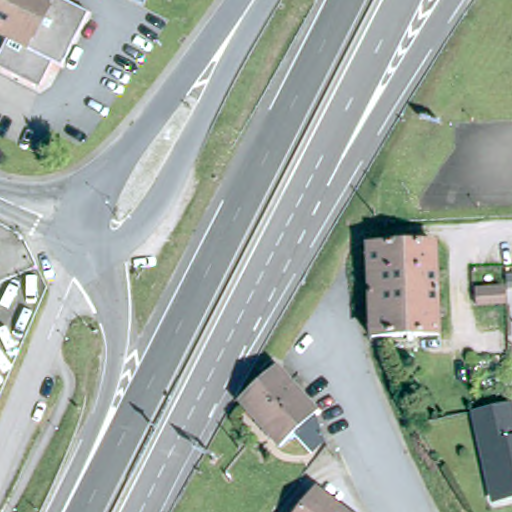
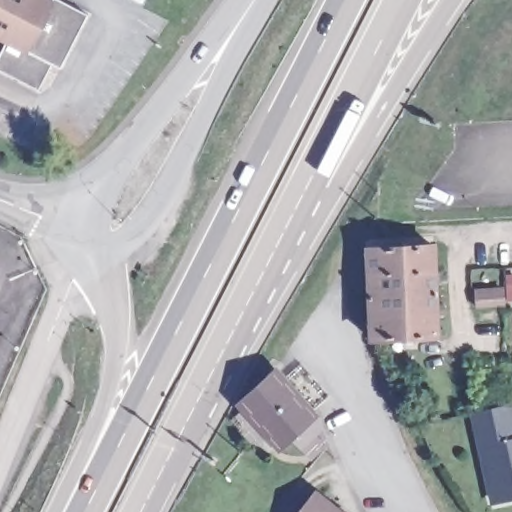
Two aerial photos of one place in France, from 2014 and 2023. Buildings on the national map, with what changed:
unchanged [(57,2),(93,19),(67,74),(59,70),(47,97),(0,75),(13,48),(0,42),(0,0),(40,0),(55,7),(57,2)]
unchanged [(147,16),(116,0),(153,0),(147,16)]
unchanged [(402,243),(402,237),(414,237),(414,243),(433,242),(437,331),(410,332),(410,340),(402,340),(402,332),(370,333),(368,293),(365,245),(402,243)]
unchanged [(307,448),(290,430),(277,442),(237,399),(272,367),(310,407),(320,437),(307,448)]
unchanged [(493,444),(487,414),(500,411),(512,408),(512,489),(512,490),(502,492),(493,444)]
unchanged [(346,512),(293,512),(315,487),(346,512)]

